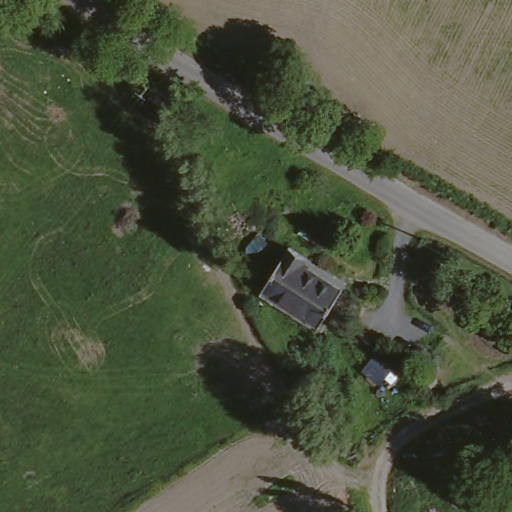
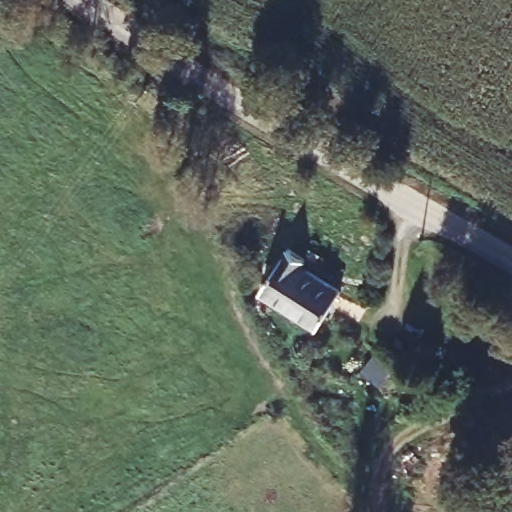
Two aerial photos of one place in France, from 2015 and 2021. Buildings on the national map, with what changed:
unchanged [(308,260),(303,267),(343,291),(320,328),(258,292),(286,246),(308,260)]

